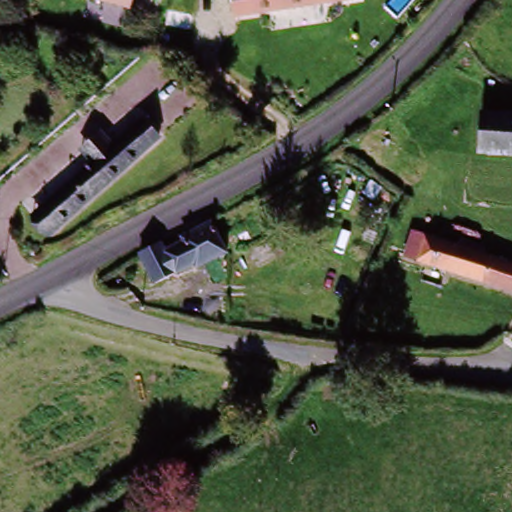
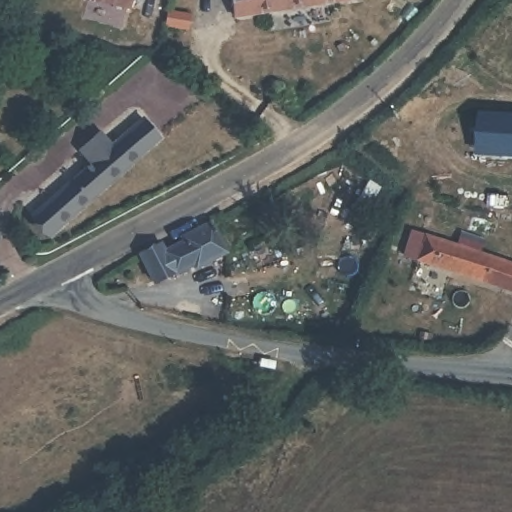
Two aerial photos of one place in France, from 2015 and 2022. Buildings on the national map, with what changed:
unchanged [(113,0),(134,0),(133,4),(113,0)]
unchanged [(350,0),(232,15),(230,0),(350,0)]
unchanged [(475,155),(476,120),(512,122),(512,157),(475,155)]
unchanged [(78,168),(100,148),(108,156),(140,129),(156,146),(40,243),(25,226),(84,175),(78,168)]
unchanged [(169,245),(171,250),(192,242),(189,236),(212,225),(224,254),(202,263),(152,284),(141,260),(140,257),(169,245)]
unchanged [(405,259),(410,244),(427,249),(430,239),(464,251),(467,244),(509,261),(507,265),(512,268),(512,298),(405,259)]

